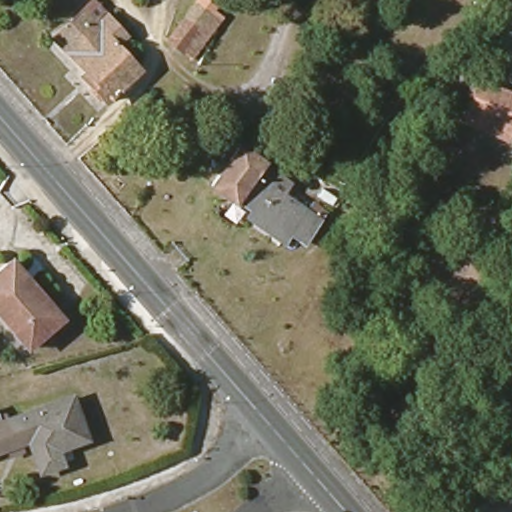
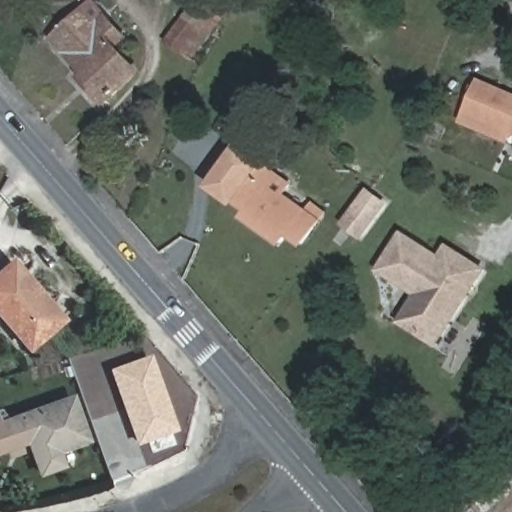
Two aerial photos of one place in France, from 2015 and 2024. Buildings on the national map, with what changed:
unchanged [(163,51),(202,0),(209,0),(217,6),(207,21),(214,27),(184,68),(177,63),(163,51)]
unchanged [(120,51),(143,76),(111,105),(90,83),(94,79),(60,42),(89,16),(99,6),(115,24),(131,41),(120,51)]
unchanged [(463,121),(466,112),(479,81),(512,94),(512,132),(511,131),(507,141),(463,121)]
unchanged [(283,190),(307,207),(315,198),(325,205),(303,238),(289,228),(284,235),(252,211),(255,207),(236,193),(234,198),(211,181),(240,143),(262,158),(261,159),(290,180),(283,190)]
new [(361,240),(340,224),(369,188),(389,204),(361,240)]
new [(437,348),(397,322),(414,295),(375,271),(402,230),(439,255),(447,242),(487,268),(437,348)]
unchanged [(0,313),(0,265),(11,256),(22,270),(45,297),(60,315),(26,344),(0,313)]
new [(178,431),(135,445),(109,369),(150,354),(178,431)]
unchanged [(0,446),(0,417),(71,392),(87,435),(57,447),(62,460),(41,468),(28,437),(21,439),(25,449),(9,455),(5,445),(0,446)]

